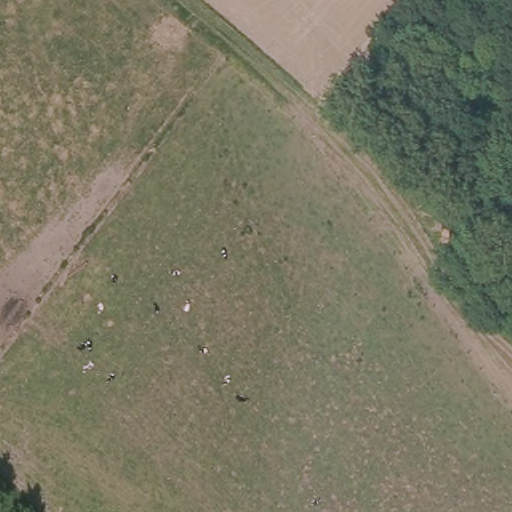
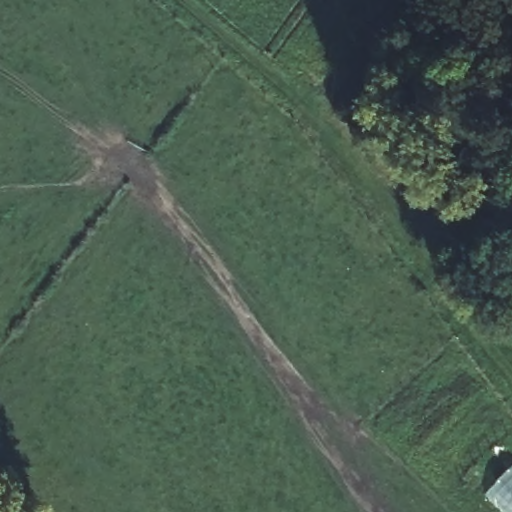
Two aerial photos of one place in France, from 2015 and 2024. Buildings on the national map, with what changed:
new [(512,464),(512,512),(500,512),(483,497),(512,464)]

